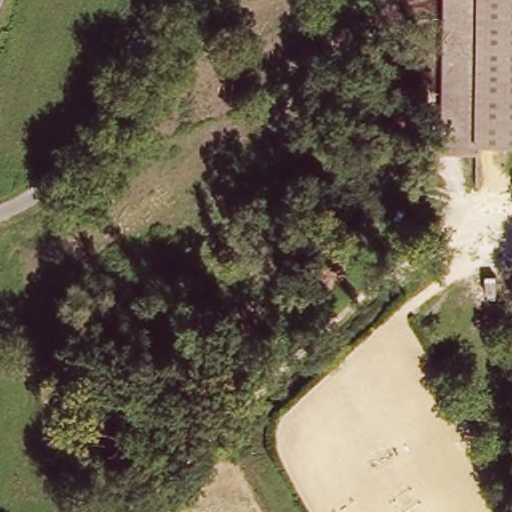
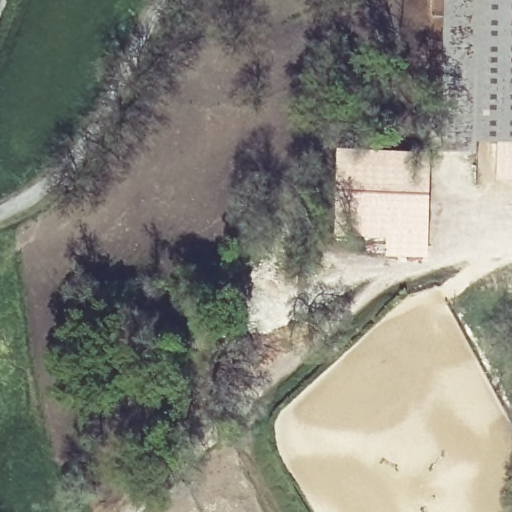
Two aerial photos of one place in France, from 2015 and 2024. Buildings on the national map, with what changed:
unchanged [(443,0),(512,0),(512,144),(441,143),(443,0)]
new [(335,151),(431,153),(428,259),(386,259),(385,241),(334,239),(335,151)]

